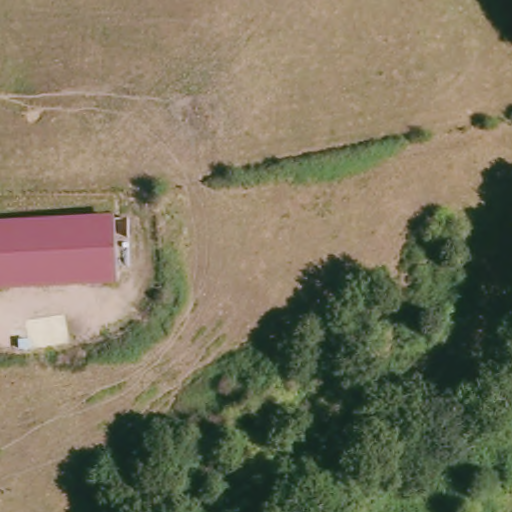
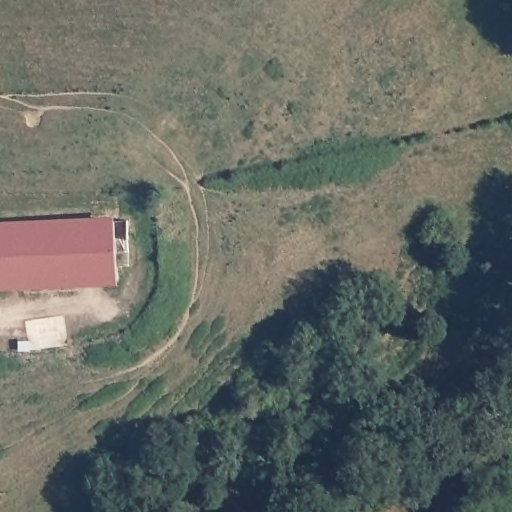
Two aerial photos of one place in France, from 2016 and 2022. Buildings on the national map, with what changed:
unchanged [(0,285),(0,216),(112,212),(116,282),(0,285)]

